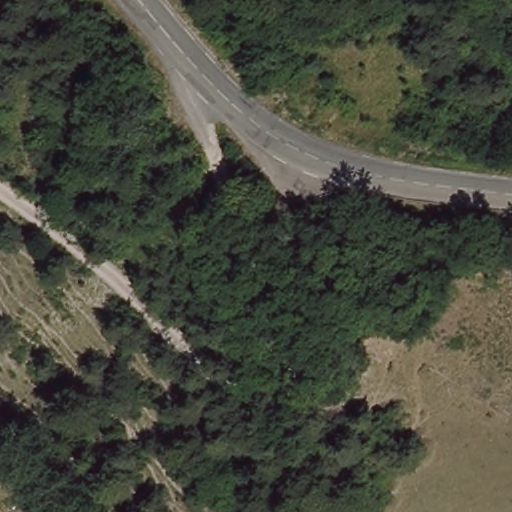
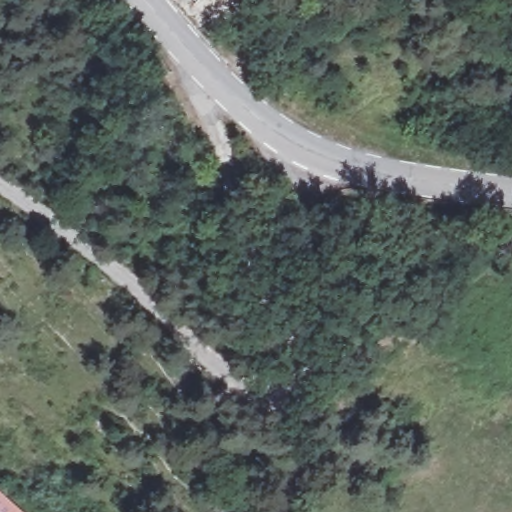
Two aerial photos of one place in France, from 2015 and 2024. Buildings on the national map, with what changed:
new [(0,512),(0,492),(22,512),(0,512)]

